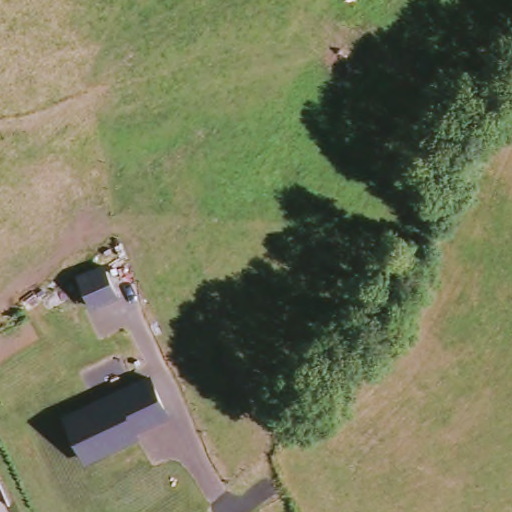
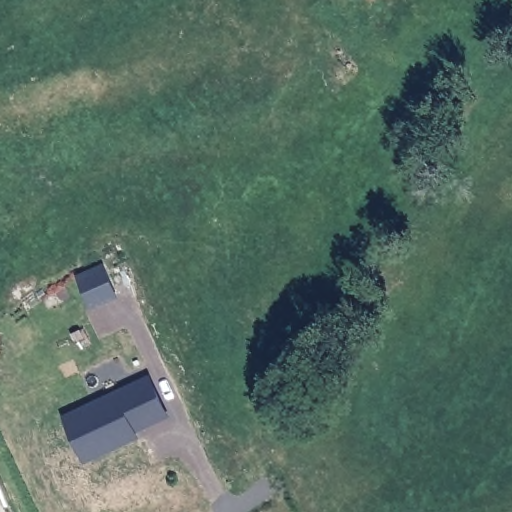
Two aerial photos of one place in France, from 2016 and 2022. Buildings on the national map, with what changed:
unchanged [(173,416),(137,432),(140,437),(88,465),(67,415),(152,374),(173,416)]

